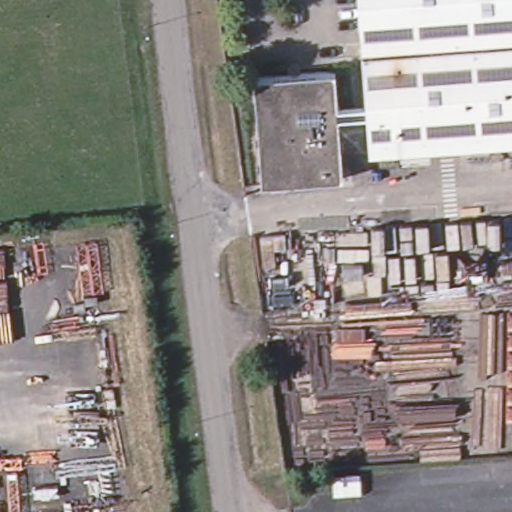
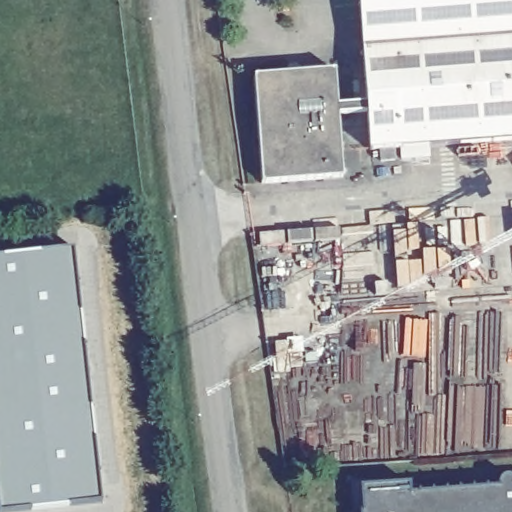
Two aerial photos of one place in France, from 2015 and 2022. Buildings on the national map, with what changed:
unchanged [(395,150),(370,152),(365,152),(354,0),(512,0),(512,141),(395,150)]
unchanged [(331,76),(337,182),(256,187),(250,81),(331,76)]
unchanged [(372,164),(371,154),(388,153),(388,163),(372,164)]
new [(103,501),(0,511),(0,252),(75,246),(103,501)]
new [(412,490),(503,486),(503,480),(508,475),(512,475),(512,512),(365,512),(363,482),(411,480),(412,490)]

